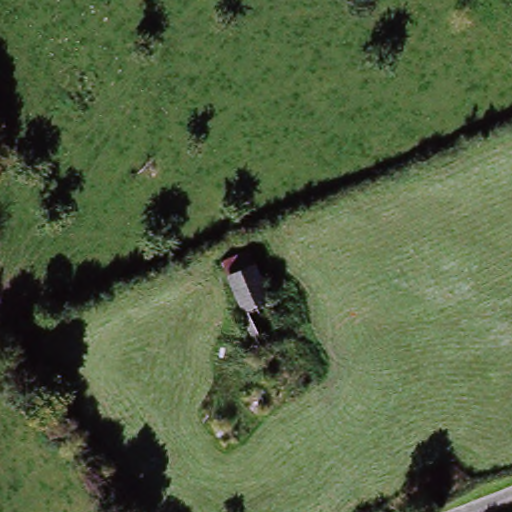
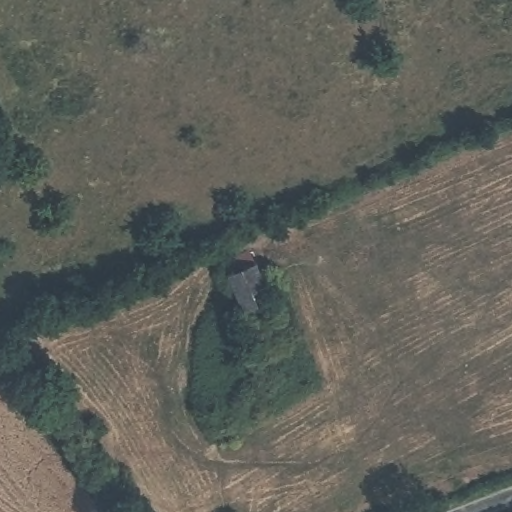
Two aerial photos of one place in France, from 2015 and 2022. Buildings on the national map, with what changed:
unchanged [(249,313),(238,292),(243,291),(266,280),(286,322),(259,335),(248,341),(236,319),(249,313)]

